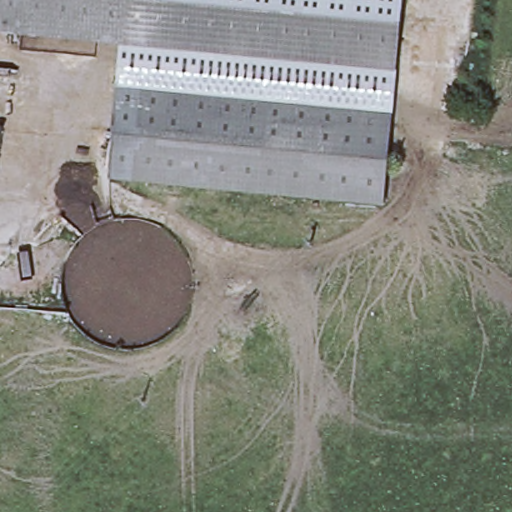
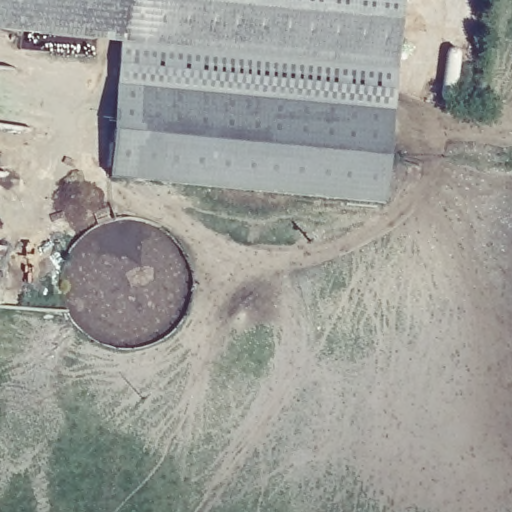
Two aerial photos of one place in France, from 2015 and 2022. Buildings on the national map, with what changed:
unchanged [(173,92),(121,87),(120,43),(0,31),(0,0),(403,0),(395,113),(173,92)]
unchanged [(165,180),(113,175),(121,87),(173,92),(165,180)]
unchanged [(395,113),(388,200),(165,180),(173,92),(395,113)]

